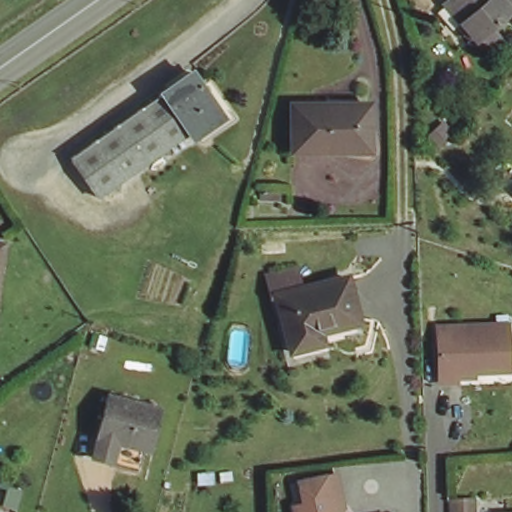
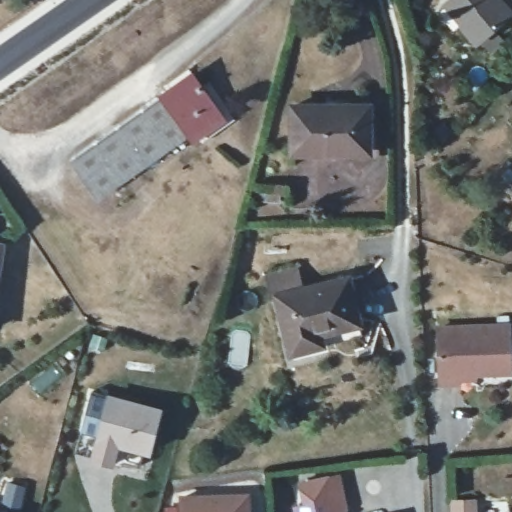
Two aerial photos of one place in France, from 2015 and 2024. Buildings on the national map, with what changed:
unchanged [(505,16),(477,40),(462,21),(470,16),(455,0),(512,0),(512,24),(505,16)]
unchanged [(227,119),(198,140),(190,132),(102,195),(72,154),(190,70),(227,119)]
unchanged [(371,104),(370,147),(295,147),(297,105),(371,104)]
unchanged [(0,256),(0,245),(2,245),(0,256)]
unchanged [(349,279),(360,318),(316,334),(319,347),(292,355),(283,297),(349,279)]
unchanged [(510,330),(510,372),(462,376),(462,386),(442,387),(443,332),(510,330)]
unchanged [(115,450),(113,457),(90,451),(110,391),(162,403),(151,442),(147,440),(143,457),(115,450)]
unchanged [(336,512),(288,512),(287,502),(307,497),(305,477),(340,470),(345,498),(336,512)]
new [(250,492),(251,512),(180,512),(180,495),(250,492)]
unchanged [(2,512),(0,512),(0,511),(2,512)]

